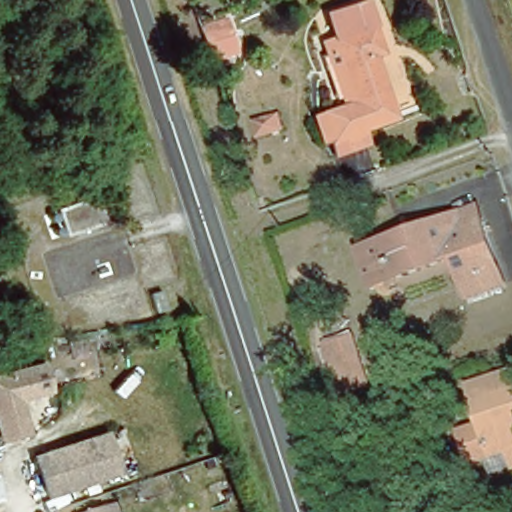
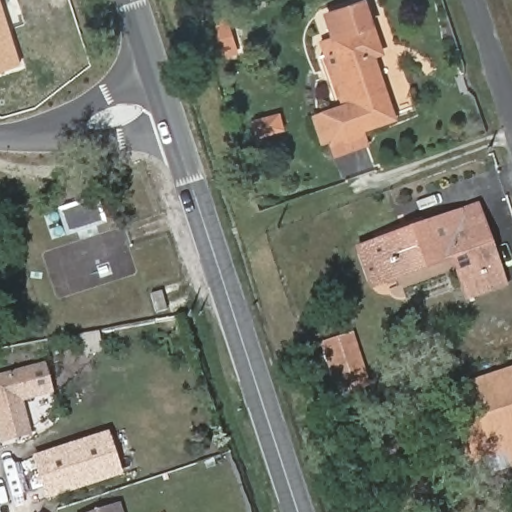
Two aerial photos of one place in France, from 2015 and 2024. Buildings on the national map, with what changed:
unchanged [(362,44),(388,114),(357,125),(365,146),(336,156),(318,110),(339,102),(316,39),(331,33),(322,8),(345,0),(363,0),(377,38),(362,44)]
new [(0,71),(0,2),(23,62),(0,71)]
unchanged [(93,197),(101,221),(64,234),(56,208),(93,197)]
unchanged [(464,303),(445,256),(361,289),(340,247),(477,199),(508,286),(464,303)]
unchanged [(149,245),(158,242),(165,262),(154,265),(149,245)]
unchanged [(373,394),(339,405),(313,333),(353,325),(373,394)]
unchanged [(25,400),(33,435),(1,443),(0,439),(0,373),(46,361),(55,394),(25,400)]
unchanged [(512,363),(512,463),(494,470),(490,459),(476,465),(465,434),(479,428),(462,385),(512,363)]
unchanged [(105,434),(119,475),(71,493),(54,452),(105,434)]
unchanged [(71,493),(46,501),(31,460),(54,452),(71,493)]
unchanged [(115,510),(116,512),(110,512),(115,510)]

